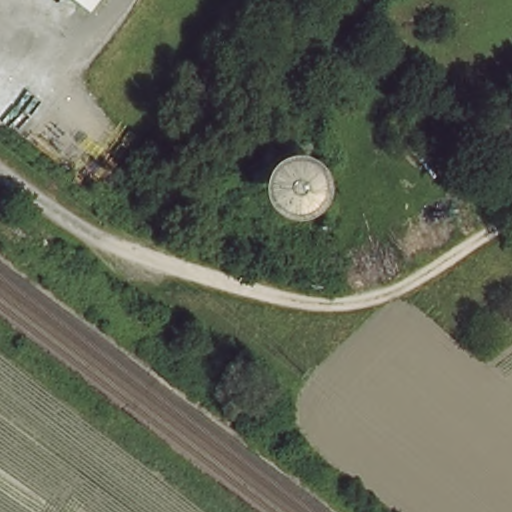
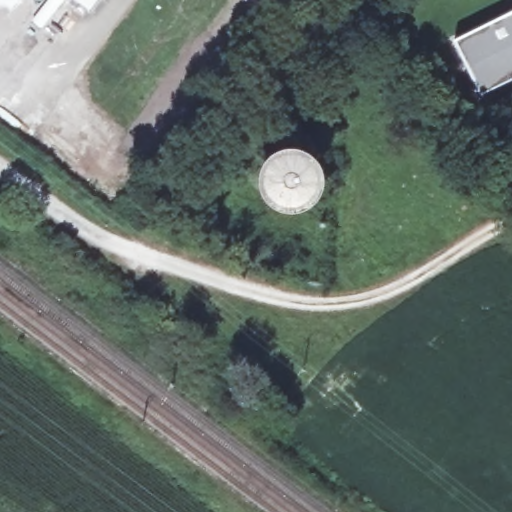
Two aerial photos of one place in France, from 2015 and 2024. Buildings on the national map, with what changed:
unchanged [(93,13),(76,0),(103,0),(93,13)]
new [(453,41),(512,12),(512,81),(480,96),(453,41)]

